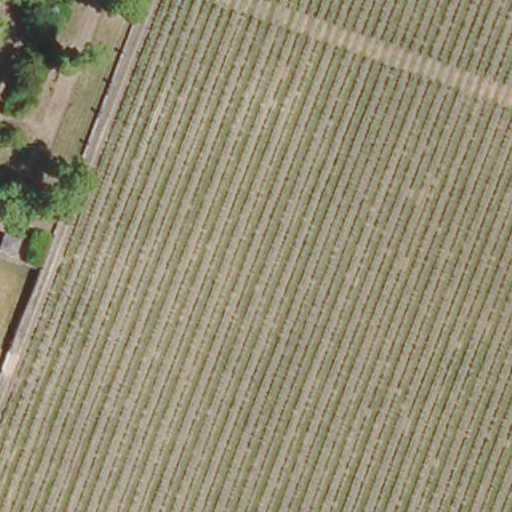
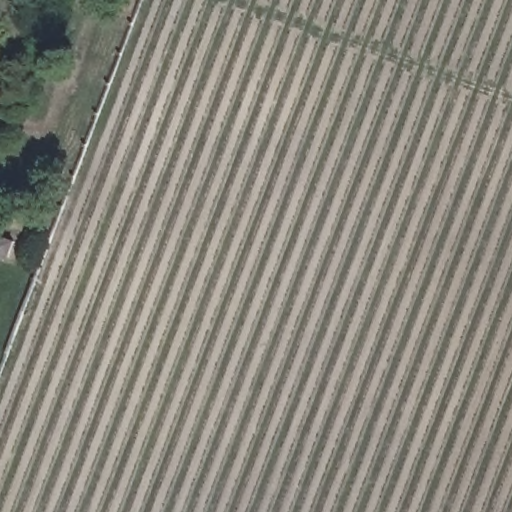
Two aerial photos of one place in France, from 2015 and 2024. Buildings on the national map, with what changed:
unchanged [(11,257),(0,253),(0,235),(18,240),(11,257)]

